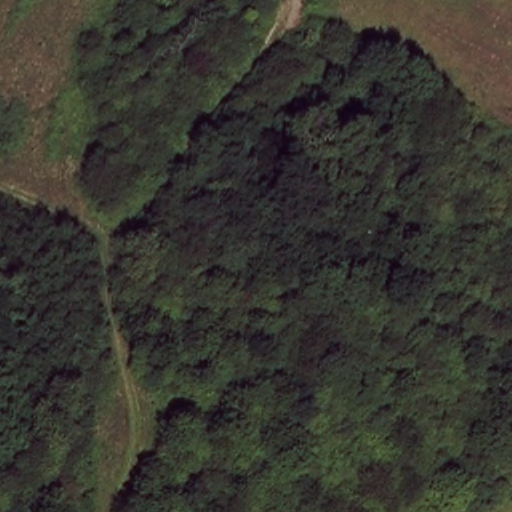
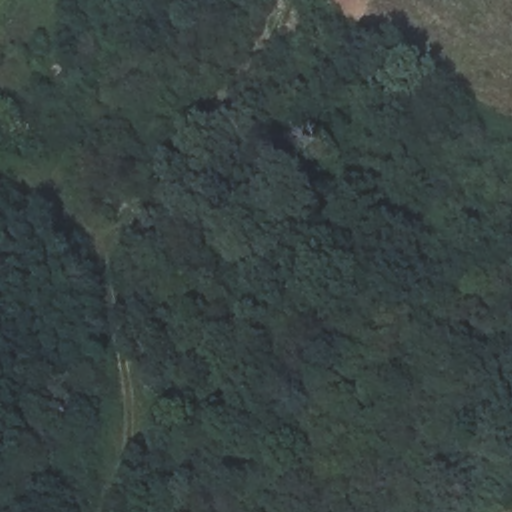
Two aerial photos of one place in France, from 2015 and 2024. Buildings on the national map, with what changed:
[]

